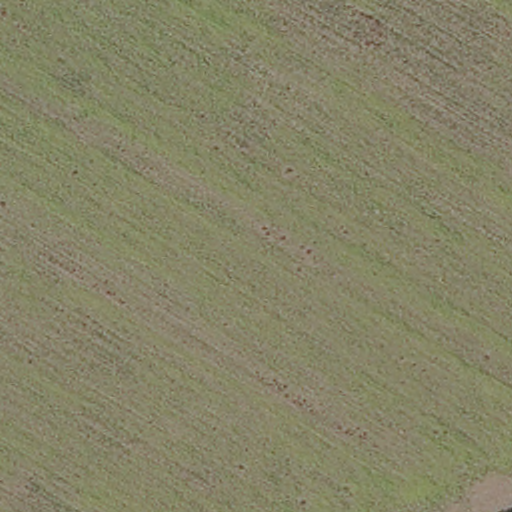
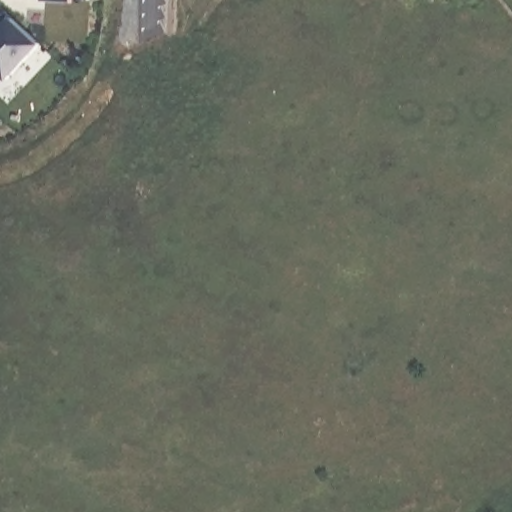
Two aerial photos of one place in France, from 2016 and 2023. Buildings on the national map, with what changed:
new [(50,3),(50,0),(78,0),(78,4),(50,3)]
new [(9,79),(0,71),(0,35),(3,32),(0,29),(0,21),(8,12),(42,45),(9,79)]

